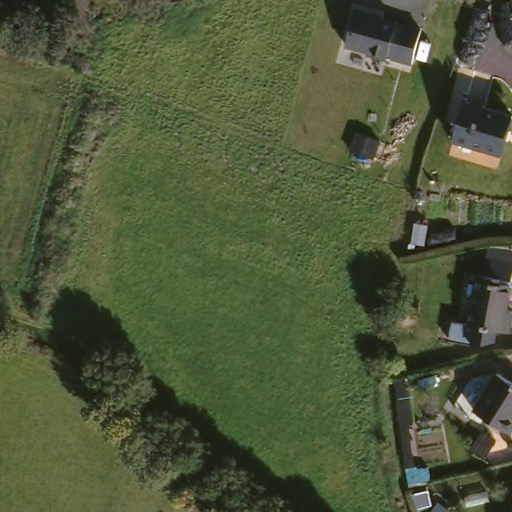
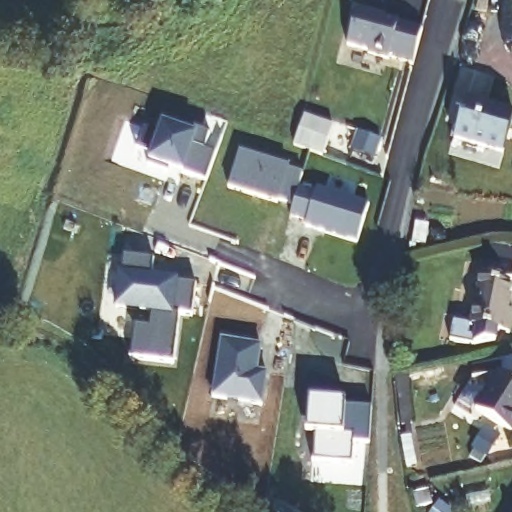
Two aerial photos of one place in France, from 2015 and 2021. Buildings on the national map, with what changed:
unchanged [(414,66),(390,60),(389,62),(369,57),(370,54),(348,48),(358,12),(385,20),(384,22),(423,33),(414,66)]
unchanged [(475,99),(512,109),(512,115),(502,149),(464,138),(475,99)]
new [(303,115),(331,125),(323,154),(294,144),(303,115)]
new [(142,122),(158,128),(161,119),(179,125),(181,117),(209,127),(204,143),(215,148),(205,176),(182,168),(183,164),(170,160),(168,169),(146,161),(150,150),(134,143),(142,122)]
new [(240,154),(289,171),(289,173),(304,178),(300,188),(294,208),(278,203),(277,205),(228,189),(240,154)]
new [(294,208),(300,188),(317,193),(318,190),(371,208),(361,246),(306,226),(307,222),(292,216),(294,208)]
new [(122,253),(154,257),(151,276),(196,282),(192,314),(179,313),(173,362),(129,356),(134,323),(149,324),(150,309),(115,305),(122,253)]
unchanged [(479,317),(486,253),(512,257),(512,325),(479,317)]
new [(220,338),(259,345),(255,370),(265,372),(260,404),(212,396),(220,338)]
unchanged [(486,410),(507,374),(512,377),(512,428),(486,410)]
new [(329,392),(329,399),(345,400),(345,405),(372,406),(369,442),(354,441),(353,462),(314,459),(315,432),(307,431),(308,419),(309,390),(329,392)]

